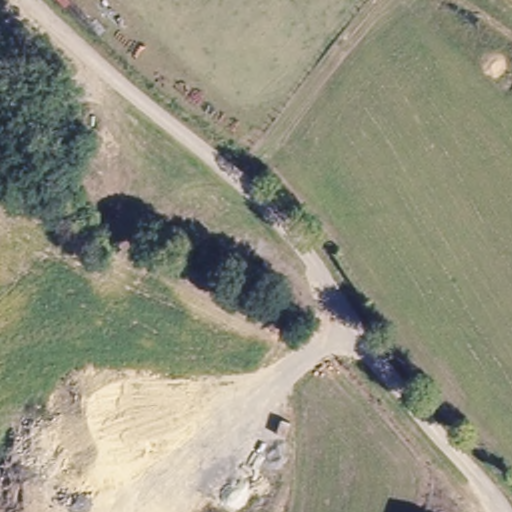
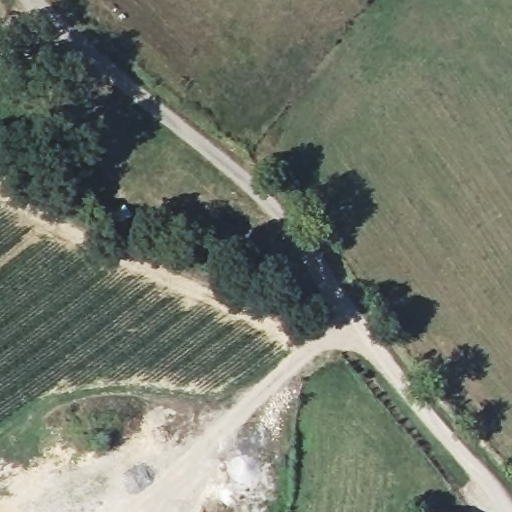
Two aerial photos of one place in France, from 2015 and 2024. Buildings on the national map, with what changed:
unchanged [(422,512),(416,512),(416,511),(422,512)]

